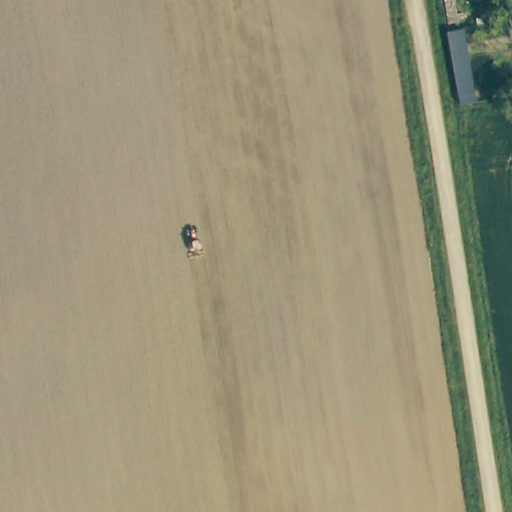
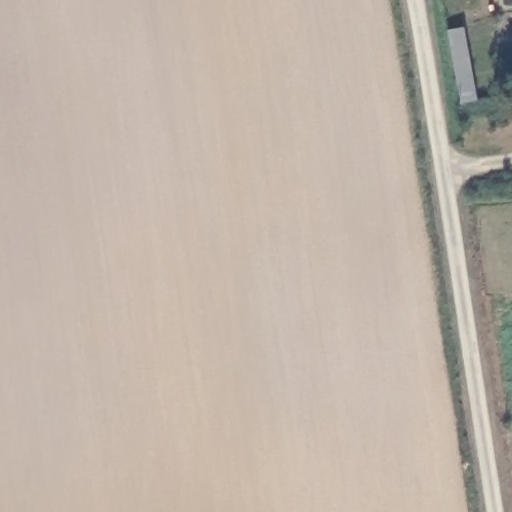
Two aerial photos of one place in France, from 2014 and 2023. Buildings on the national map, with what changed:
unchanged [(476,102),(459,104),(447,32),(463,30),(476,102)]

